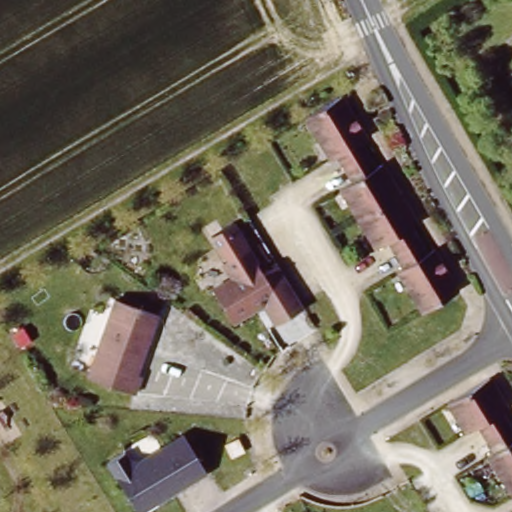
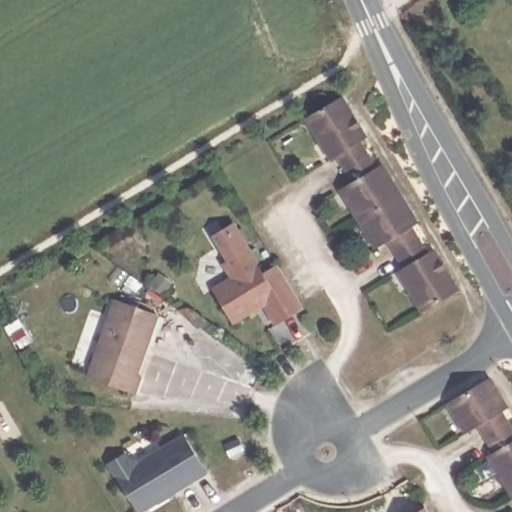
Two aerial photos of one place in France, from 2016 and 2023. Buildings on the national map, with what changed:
unchanged [(375,252),(340,190),(352,184),(339,159),(330,163),(307,120),(345,99),(370,140),(364,144),(379,169),(385,165),(419,230),(414,232),(429,260),(435,256),(457,297),(420,317),(399,277),(402,275),(387,245),(375,252)]
unchanged [(260,268),(274,262),(303,307),(277,322),(267,305),(235,323),(214,286),(232,276),(211,236),(237,220),(260,268)]
unchanged [(125,307),(164,324),(137,385),(142,386),(135,402),(91,382),(125,307)]
unchanged [(492,458),(497,455),(483,427),(469,435),(453,405),(497,380),(512,408),(512,411),(507,413),(512,422),(512,497),(492,458)]
unchanged [(136,478),(188,450),(207,485),(159,512),(133,512),(112,473),(128,464),(136,478)]

